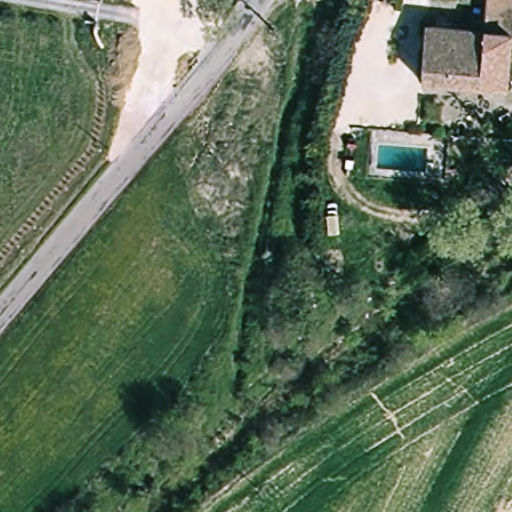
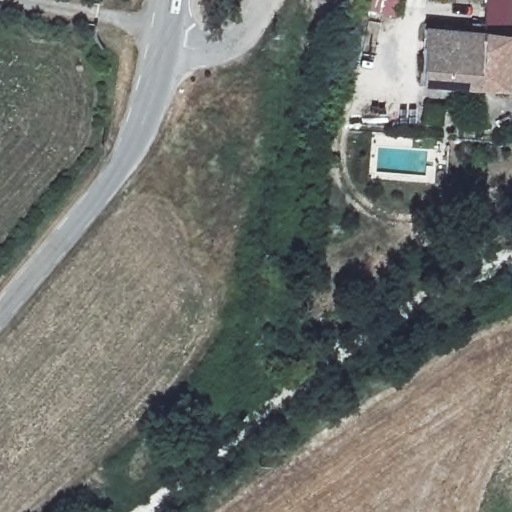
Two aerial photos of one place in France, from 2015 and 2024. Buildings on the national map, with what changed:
unchanged [(422,82),(426,31),(482,35),(486,0),(512,0),(512,47),(508,87),(422,82)]

